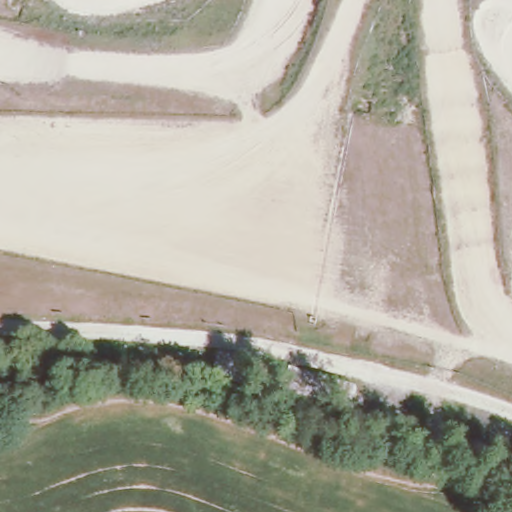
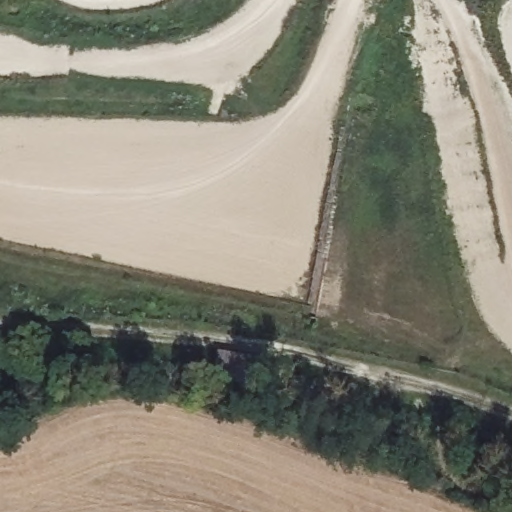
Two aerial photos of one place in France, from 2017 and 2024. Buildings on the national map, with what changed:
unchanged [(269,355),(268,386),(213,381),(218,347),(269,355)]
unchanged [(358,385),(348,414),(286,395),(289,366),(358,385)]

